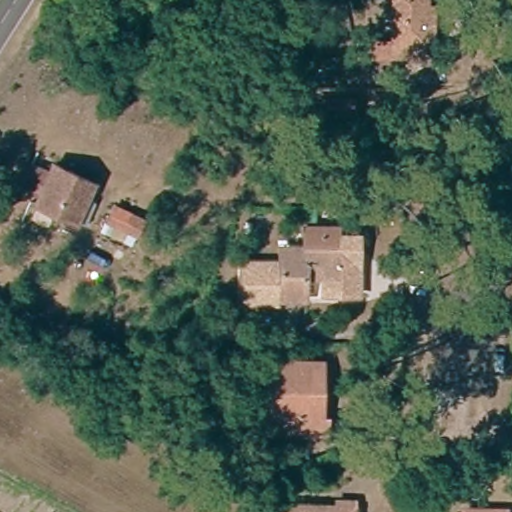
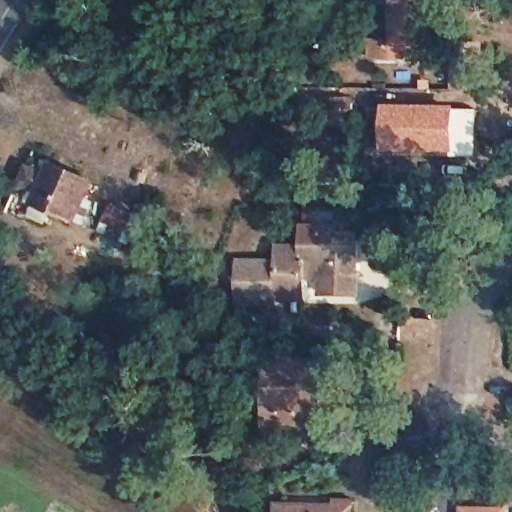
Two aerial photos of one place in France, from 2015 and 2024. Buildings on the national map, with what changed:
unchanged [(367,55),(354,38),(368,39),(387,40),(388,0),(420,0),(420,3),(427,3),(427,42),(417,41),(417,56),(387,55),(367,55)]
new [(454,45),(480,45),(480,85),(454,85),(454,45)]
unchanged [(360,119),(331,118),(332,95),(360,95),(360,119)]
new [(383,104),(454,106),(454,108),(455,156),(382,153),(383,104)]
new [(478,109),(477,156),(455,156),(454,108),(478,109)]
unchanged [(77,218),(39,201),(44,189),(27,181),(34,166),(52,173),(57,162),(95,179),(77,218)]
unchanged [(132,227),(104,213),(111,199),(139,212),(132,227)]
unchanged [(279,294),(275,294),(275,300),(240,299),(241,259),(280,260),(281,245),(305,245),(305,224),(306,225),(338,225),(337,233),(359,234),(358,259),(357,293),(322,292),(322,275),(305,275),(305,297),(303,297),(279,296),(279,294)]
unchanged [(306,419),(306,437),(264,436),(262,387),(263,368),(272,368),(315,368),(315,390),(315,419),(306,419)]
unchanged [(328,510),(328,503),(348,504),(348,512),(270,512),(271,511),(328,510)]
unchanged [(499,510),(499,512),(470,512),(470,510),(499,510)]

